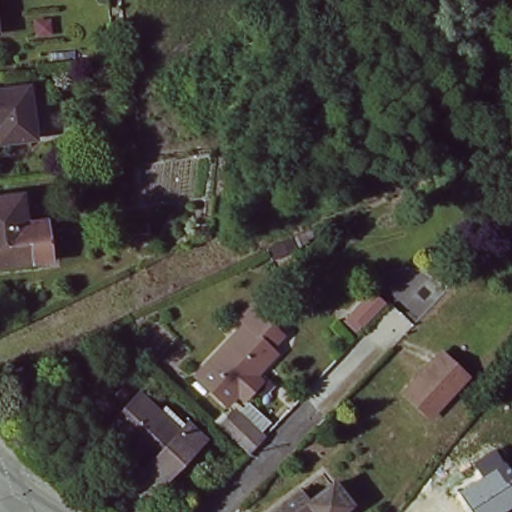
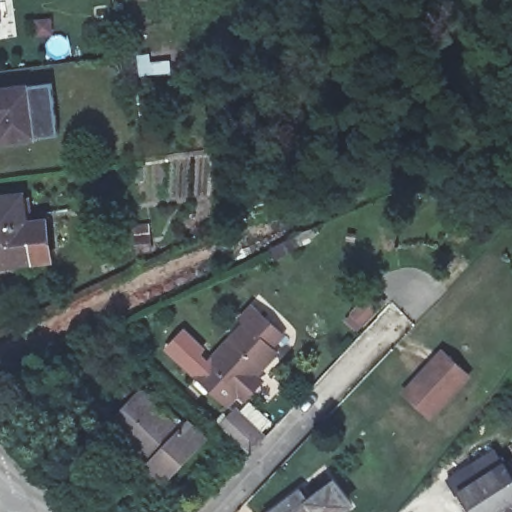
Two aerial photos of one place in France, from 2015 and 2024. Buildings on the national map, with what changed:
unchanged [(3,141),(0,125),(0,126),(0,88),(31,84),(38,136),(3,141)]
unchanged [(0,263),(0,196),(23,193),(31,259),(0,263)]
unchanged [(242,399),(236,394),(226,404),(197,377),(246,325),(241,320),(251,309),(271,328),(281,338),(271,349),(276,354),(253,377),(259,382),(242,399)]
unchanged [(443,352),(470,377),(431,419),(404,393),(443,352)]
unchanged [(205,435),(197,443),(201,448),(166,483),(149,466),(153,463),(115,424),(146,394),(165,412),(170,406),(190,426),(193,423),(205,435)]
unchanged [(250,400),(271,421),(260,433),(261,434),(254,443),(256,446),(251,453),(223,427),(250,400)]
unchanged [(512,473),(512,512),(471,512),(458,489),(480,477),(472,462),(497,449),(512,473)]
unchanged [(306,487),(314,498),(340,479),(358,504),(347,512),(272,512),(306,487)]

